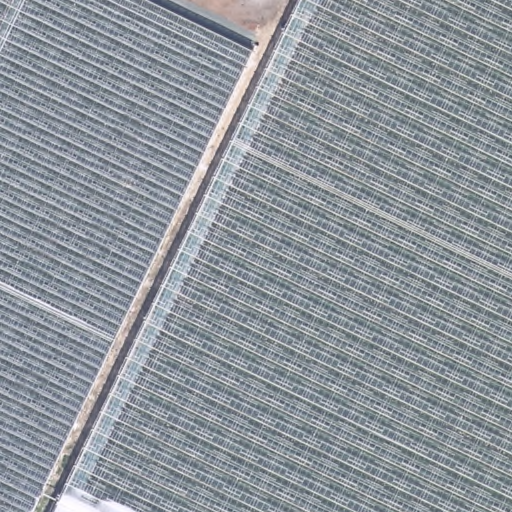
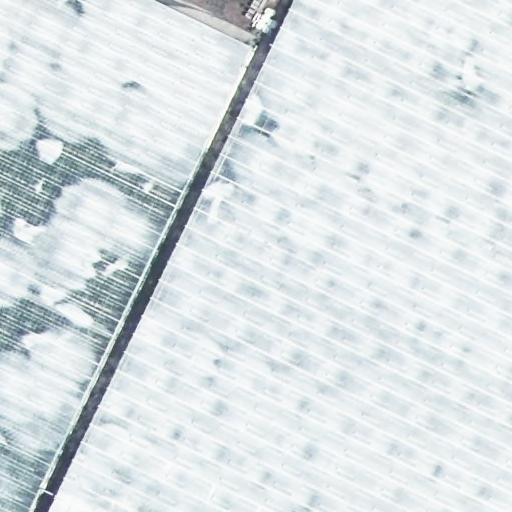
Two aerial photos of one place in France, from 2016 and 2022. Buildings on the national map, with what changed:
unchanged [(120,0),(0,233),(0,0),(120,0)]
unchanged [(31,512),(0,512),(0,233),(120,0),(151,0),(254,49),(31,512)]
unchanged [(59,501),(299,0),(512,0),(512,512),(53,512),(59,501)]

